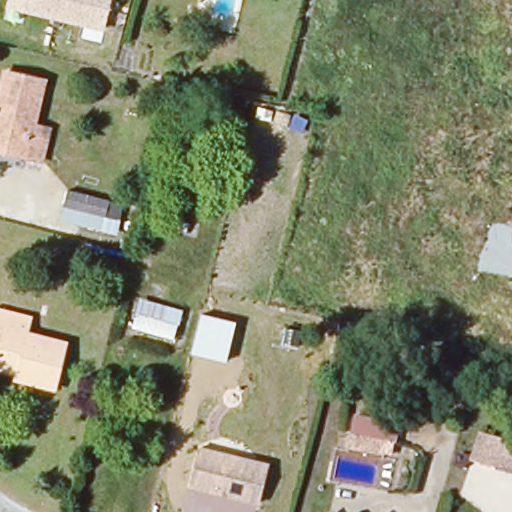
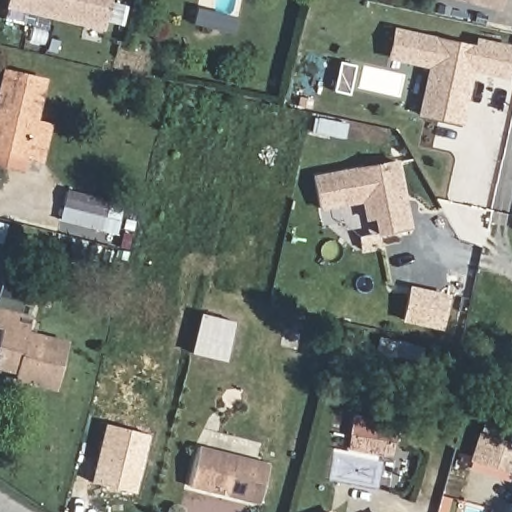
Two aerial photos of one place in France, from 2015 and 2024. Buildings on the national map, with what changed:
unchanged [(7,8),(9,0),(112,0),(105,30),(7,8)]
new [(467,0),(496,0),(494,7),(467,0)]
new [(463,125),(417,116),(427,68),(386,60),(392,27),(473,45),(474,38),(512,46),(512,51),(506,79),(473,73),(463,125)]
unchanged [(46,126),(40,158),(22,155),(21,157),(0,153),(0,76),(40,85),(32,122),(46,126)]
new [(365,222),(362,203),(317,212),(311,176),(397,161),(411,230),(377,236),(373,219),(365,222)]
unchanged [(122,199),(118,221),(105,217),(100,231),(58,222),(67,186),(122,199)]
new [(402,322),(409,287),(451,295),(443,330),(402,322)]
unchanged [(180,312),(172,342),(130,330),(136,299),(180,312)]
unchanged [(22,378),(22,373),(0,368),(0,311),(32,318),(28,332),(65,342),(55,386),(22,378)]
unchanged [(226,364),(190,356),(203,313),(236,322),(226,364)]
unchanged [(391,455),(345,447),(352,415),(397,425),(391,455)]
new [(136,493),(91,482),(105,423),(150,435),(136,493)]
unchanged [(507,477),(485,471),(492,442),(512,447),(512,459),(507,477)]
unchanged [(262,507),(194,488),(204,450),(272,469),(262,507)]

